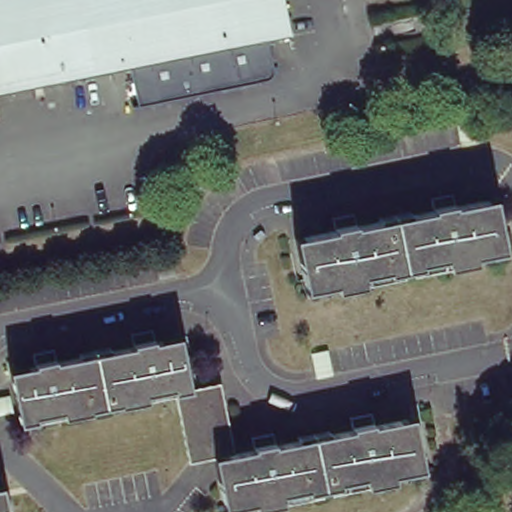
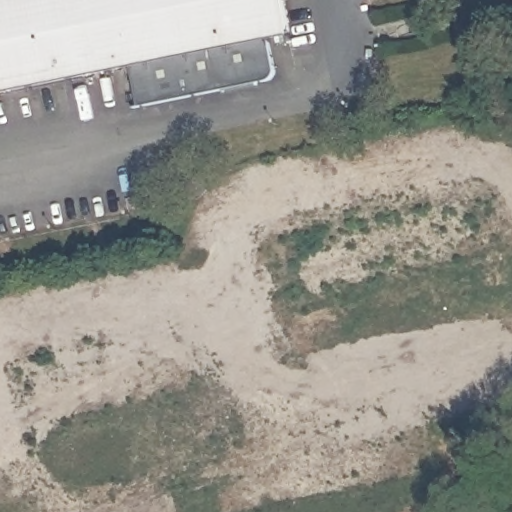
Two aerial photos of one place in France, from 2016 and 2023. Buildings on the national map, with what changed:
unchanged [(289,34),(268,39),(275,73),(276,73),(276,74),(275,75),(275,76),(275,77),(275,78),(274,78),(274,79),(273,80),(273,81),(272,81),(272,82),(271,82),(270,83),(269,83),(268,83),(140,109),(131,66),(0,93),(0,0),(282,0),(289,34)]
demolished [(340,230),(338,222),(359,218),(361,226),(439,210),(437,203),(458,199),(459,206),(498,198),(508,250),(450,262),(448,258),(422,263),(423,268),(397,272),(396,268),(367,275),(368,279),(311,290),(300,238),(340,230)]
demolished [(423,469),(364,481),(363,477),(335,483),(336,487),(313,491),(312,488),(283,493),(283,497),(225,509),(214,457),(188,463),(174,393),(172,394),(171,389),(118,400),(119,404),(91,409),(90,405),(49,414),(41,373),(28,376),(26,368),(34,366),(31,358),(53,354),(55,362),(132,346),(130,338),(152,333),(154,342),(179,337),(189,389),(219,382),(234,454),(253,450),(251,441),(274,437),(275,445),(351,430),(349,421),(372,417),(373,425),(413,417),(423,469)]
demolished [(6,512),(0,512),(0,487),(1,487),(6,512)]

